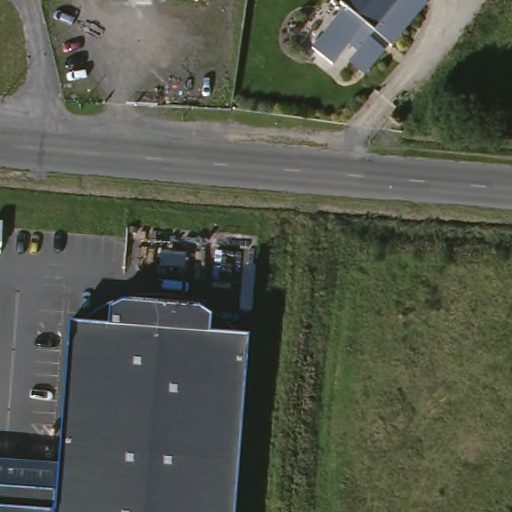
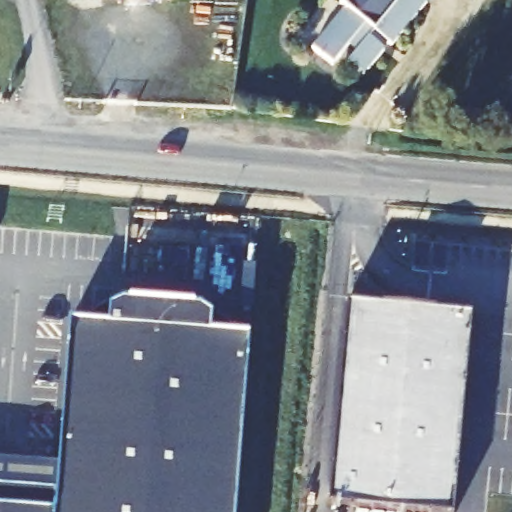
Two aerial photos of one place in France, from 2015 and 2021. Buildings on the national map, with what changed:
unchanged [(96,0),(171,0),(170,7),(96,0)]
unchanged [(389,50),(387,47),(365,72),(350,59),(354,54),(347,47),(330,67),(310,50),(344,10),(339,6),(344,0),(418,0),(426,7),(389,50)]
unchanged [(93,317),(99,312),(105,308),(112,305),(119,302),(126,300),(133,297),(140,296),(148,295),(155,295),(163,295),(170,295),(178,296),(184,297),(192,300),(199,302),(205,305),(212,309),(219,313),(224,317),(230,322),(235,327),(240,333),(243,336),(216,333),(217,327),(218,317),(208,309),(205,307),(185,306),(162,303),(129,301),(117,307),(115,307),(114,325),(87,322),(88,322),(93,317)]
unchanged [(254,337),(237,512),(0,512),(0,461),(61,468),(75,321),(87,322),(114,325),(115,307),(117,307),(129,301),(162,303),(185,306),(205,307),(208,309),(218,317),(217,327),(216,333),(243,336),(254,337)]
new [(348,303),(473,315),(454,512),(409,512),(329,505),(348,303)]

